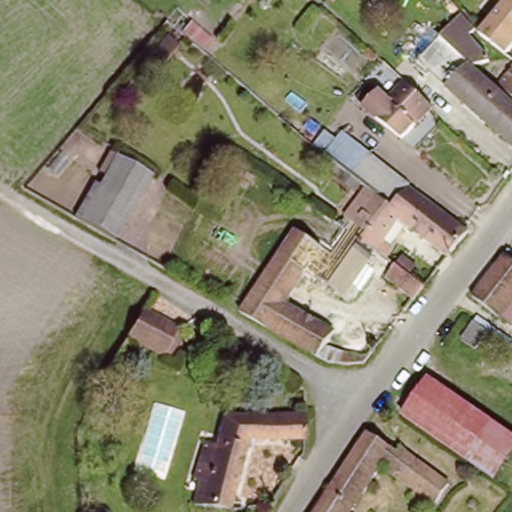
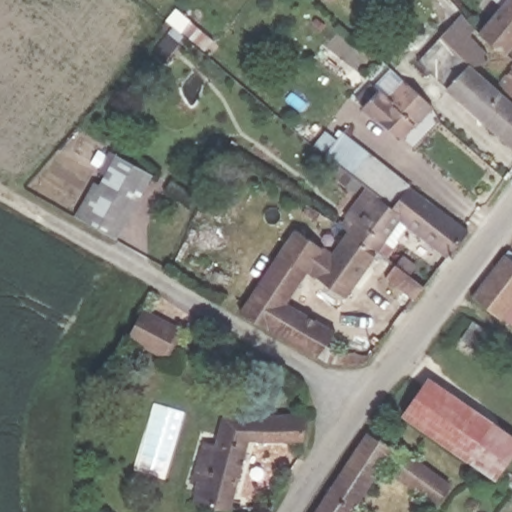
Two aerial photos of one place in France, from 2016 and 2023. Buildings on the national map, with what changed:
unchanged [(509,51),(492,51),(491,38),(480,29),(501,0),(512,0),(512,49),(510,52),(509,51)]
unchanged [(443,42),(460,9),(474,25),(469,29),(485,45),(489,59),(472,66),(512,102),(512,138),(426,63),(443,42)]
unchanged [(512,73),(512,91),(504,84),(512,73)]
unchanged [(399,138),(360,108),(374,90),(385,100),(404,80),(431,106),(399,138)]
unchanged [(405,186),(388,207),(369,193),(361,187),(327,158),(342,140),(405,186)]
unchanged [(155,180),(119,244),(80,220),(120,156),(155,180)]
unchanged [(400,221),(375,256),(343,235),(352,222),(343,216),(361,187),(369,193),(388,207),(405,186),(470,233),(448,259),(400,221)]
unchanged [(375,256),(344,301),(305,276),(288,302),(335,333),(323,351),(332,359),(330,364),(322,361),(236,318),(295,232),(329,256),(343,235),(375,256)]
unchanged [(512,271),(512,306),(499,323),(470,305),(502,263),(512,271)]
unchanged [(415,283),(424,290),(414,301),(384,281),(393,268),(415,283)]
unchanged [(177,361),(165,355),(165,358),(130,336),(148,307),(180,328),(191,335),(177,361)]
unchanged [(470,321),(474,317),(496,336),(477,359),(455,340),(470,321)]
unchanged [(359,365),(350,368),(339,367),(342,355),(365,360),(359,365)]
unchanged [(512,435),(512,457),(496,483),(401,416),(429,377),(512,435)]
unchanged [(252,442),(230,511),(200,502),(210,470),(202,469),(207,446),(219,446),(229,415),(310,415),(307,440),(252,442)]
unchanged [(395,450),(353,512),(318,512),(372,434),(395,450)]
unchanged [(453,485),(444,507),(430,500),(425,510),(417,506),(422,496),(390,480),(405,448),(453,485)]

